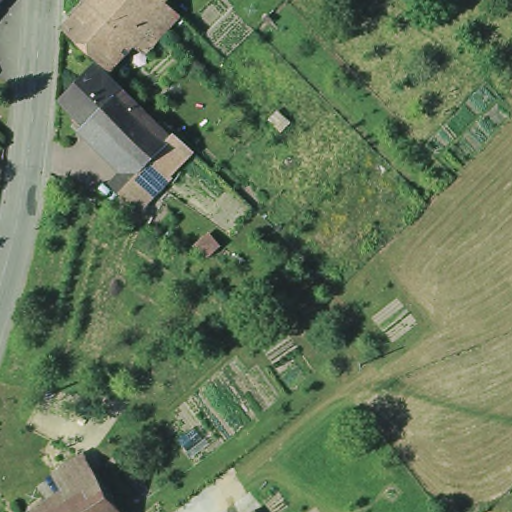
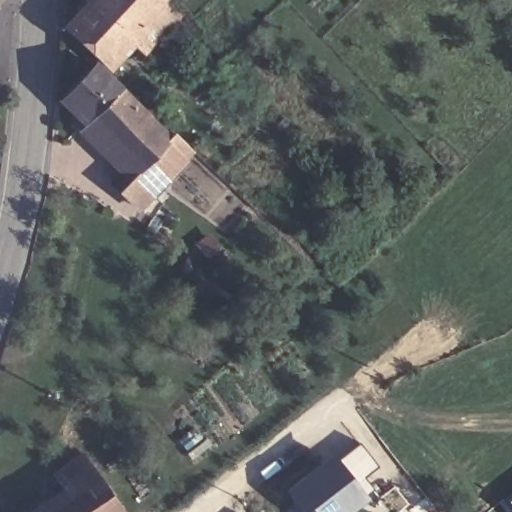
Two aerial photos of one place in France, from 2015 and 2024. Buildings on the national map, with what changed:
unchanged [(6,0),(0,6),(0,0),(6,0)]
unchanged [(142,62),(128,57),(115,73),(198,157),(142,211),(111,186),(122,173),(78,135),(87,125),(57,98),(98,57),(65,22),(88,2),(84,0),(170,0),(181,12),(142,62)]
new [(363,476),(372,489),(365,494),(368,499),(351,512),(304,512),(286,488),(331,452),(336,459),(359,442),(377,465),(363,476)]
unchanged [(58,473),(90,453),(100,470),(126,512),(40,512),(70,491),(58,473)]
new [(512,491),(512,509),(503,497),(512,491)]
new [(255,508),(258,512),(249,512),(255,508)]

